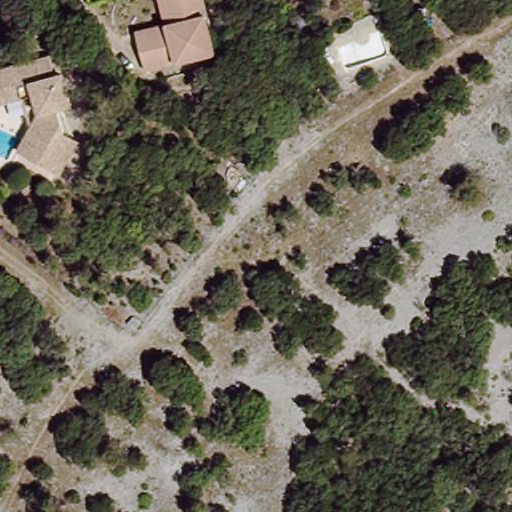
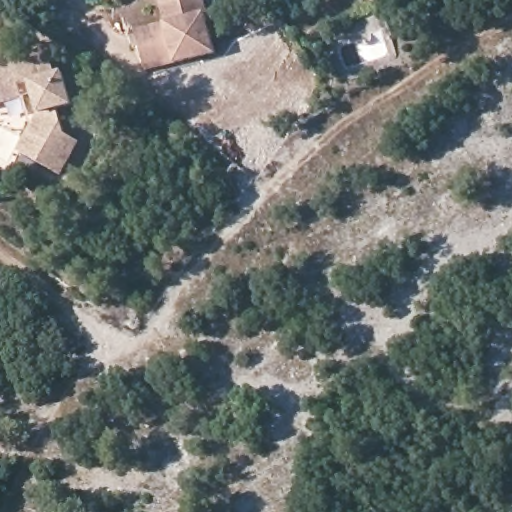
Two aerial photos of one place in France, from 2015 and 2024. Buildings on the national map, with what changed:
unchanged [(160,0),(203,0),(216,59),(146,76),(140,49),(136,35),(166,27),(160,0)]
unchanged [(56,75),(62,74),(71,104),(58,108),(65,133),(78,141),(60,174),(18,151),(40,112),(35,93),(0,102),(0,70),(51,56),(56,75)]

